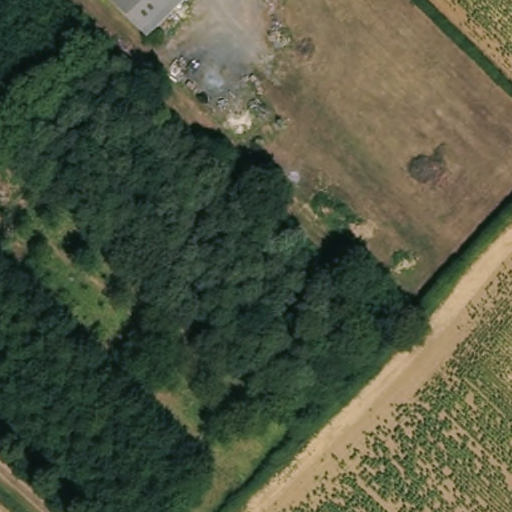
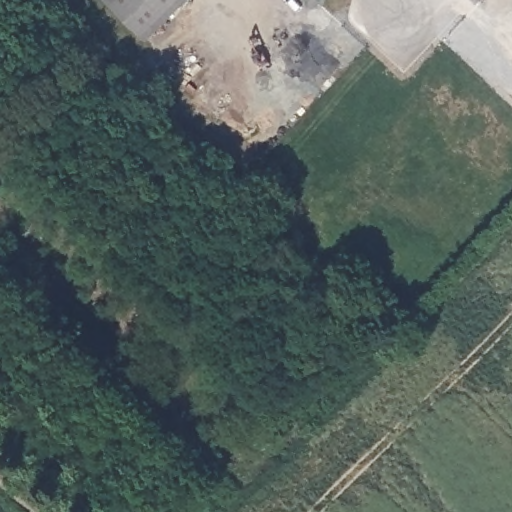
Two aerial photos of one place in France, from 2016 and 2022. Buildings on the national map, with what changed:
unchanged [(148,37),(110,0),(185,0),(148,37)]

